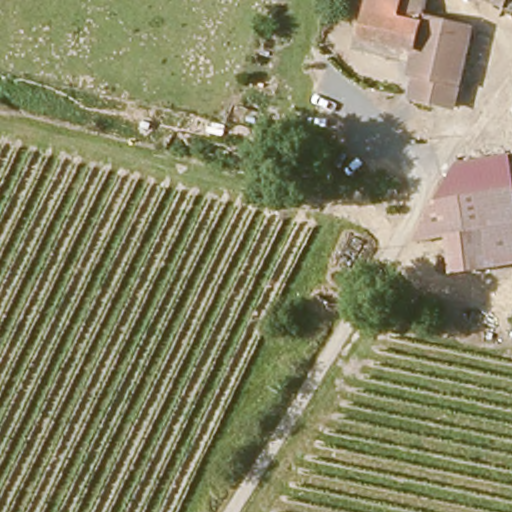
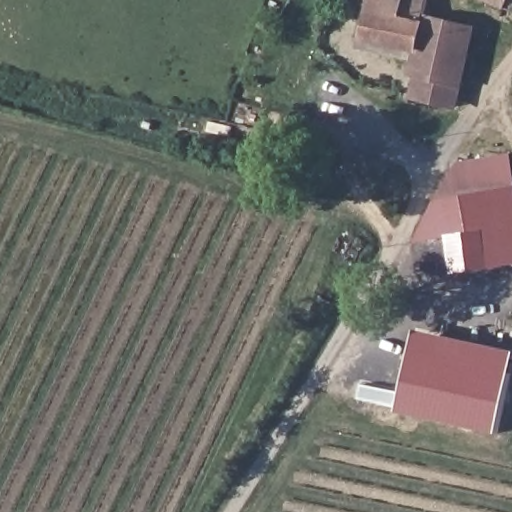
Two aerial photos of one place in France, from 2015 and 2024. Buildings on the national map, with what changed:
unchanged [(415,75),(420,52),(370,41),(377,0),(406,0),(402,15),(416,19),(425,20),(426,14),(476,29),(462,86),(421,77),(415,75)]
unchanged [(492,0),(512,0),(512,9),(506,6),(492,0)]
new [(457,109),(410,99),(415,75),(421,77),(462,86),(457,109)]
unchanged [(447,244),(415,245),(459,160),(512,152),(512,269),(452,277),(447,244)]
new [(512,400),(505,430),(404,408),(423,331),(512,348),(512,400)]

